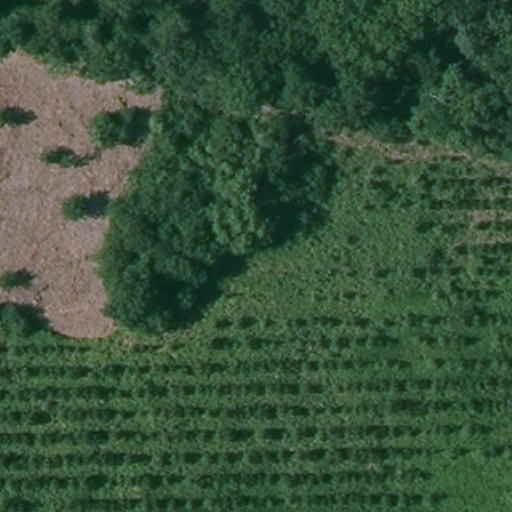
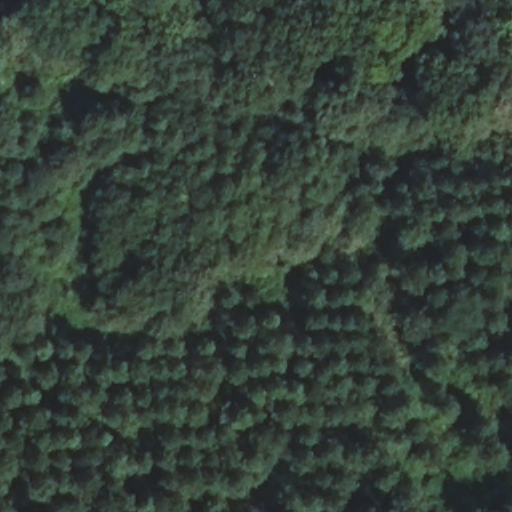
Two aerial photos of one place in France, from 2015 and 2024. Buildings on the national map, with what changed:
[]

